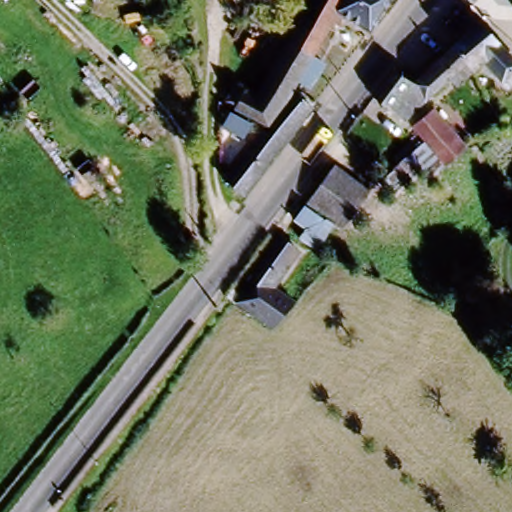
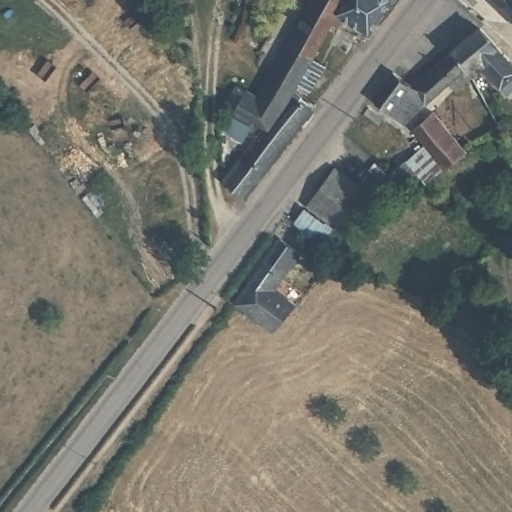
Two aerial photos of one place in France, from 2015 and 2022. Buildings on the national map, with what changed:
unchanged [(264,134),(271,126),(240,109),(249,91),(259,98),(316,0),(331,0),(344,8),(334,23),(294,90),(293,93),(302,101),(314,111),(283,149),(243,200),(224,183),(231,176),(248,152),(264,134)]
unchanged [(331,0),(348,0),(344,8),(331,0)]
unchanged [(344,20),(340,26),(334,23),(344,8),(348,0),(392,0),(370,35),(344,20)]
unchanged [(511,0),(512,0),(512,1),(511,0)]
unchanged [(470,67),(468,64),(454,47),(452,46),(479,20),(512,60),(512,82),(508,86),(484,60),(472,70),(470,67)]
unchanged [(454,47),(468,64),(424,101),(418,95),(408,106),(401,116),(371,94),(391,66),(410,83),(452,46),(454,47)]
unchanged [(467,152),(446,170),(412,131),(432,115),(467,152)]
unchanged [(253,127),(244,141),(225,129),(233,116),(253,127)]
unchanged [(306,201),(332,167),(365,193),(338,228),(330,221),(318,211),(306,201)]
unchanged [(301,228),(290,219),(301,204),(329,225),(314,248),(311,251),(304,246),(293,239),(301,228)]
unchanged [(266,330),(249,316),(246,314),(231,302),(254,271),(270,251),(279,240),(294,253),(286,263),(266,288),(269,290),(286,304),(266,330)]

